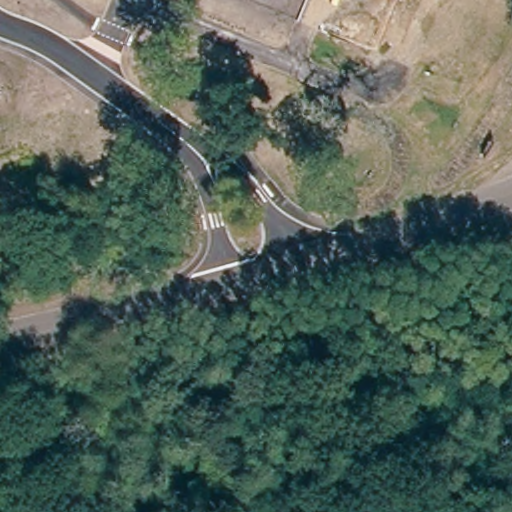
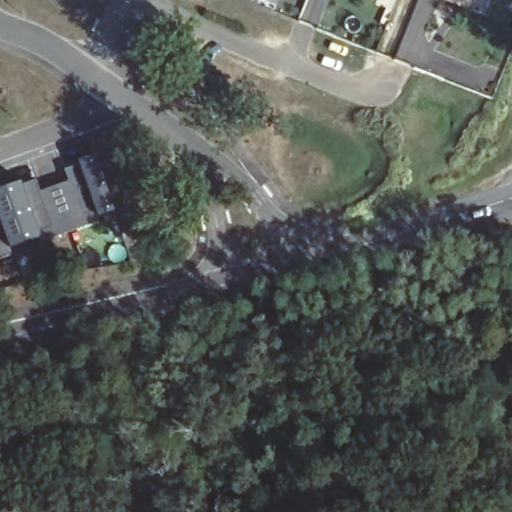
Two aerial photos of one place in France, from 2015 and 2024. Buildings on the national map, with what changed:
new [(115,214),(41,243),(39,238),(10,248),(12,249),(0,253),(0,190),(21,183),(22,188),(35,182),(39,192),(68,182),(65,171),(80,169),(77,161),(94,156),(115,214)]

